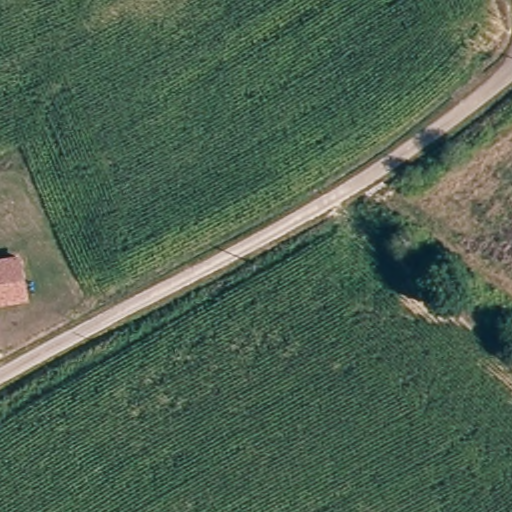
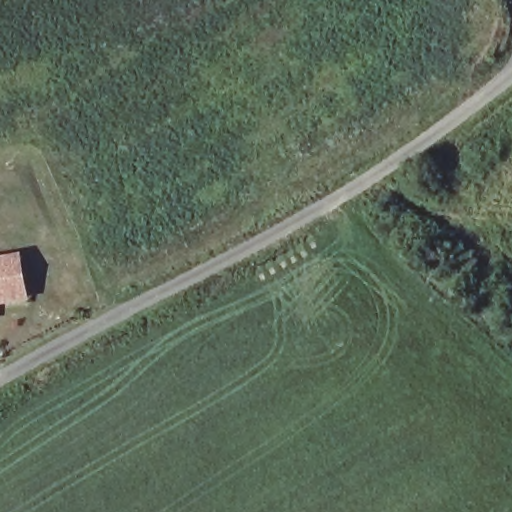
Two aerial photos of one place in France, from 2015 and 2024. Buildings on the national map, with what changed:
unchanged [(0,256),(23,252),(30,299),(0,304),(0,256)]

